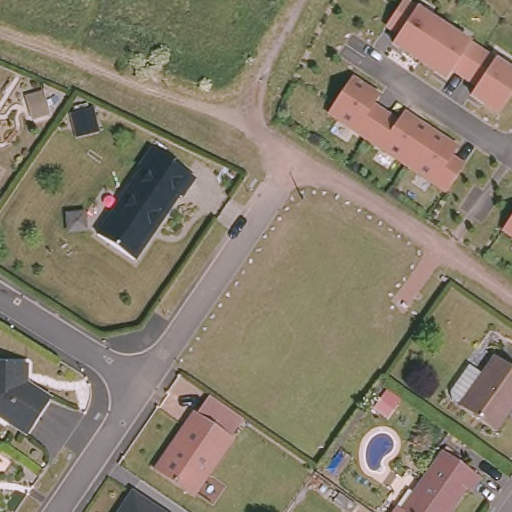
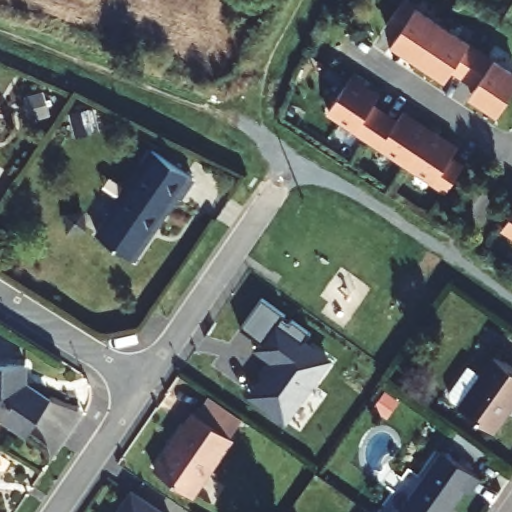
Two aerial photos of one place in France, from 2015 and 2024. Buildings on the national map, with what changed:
unchanged [(498,112),(470,94),(477,85),(452,69),(447,78),(392,42),(399,32),(386,25),(402,0),(403,0),(512,73),(512,91),(498,112)]
unchanged [(447,190),(328,111),(350,77),(378,96),(372,105),(397,121),(402,112),(457,148),(450,157),(462,166),(447,190)]
unchanged [(130,256),(95,233),(94,232),(137,167),(135,165),(148,146),(154,150),(189,174),(176,194),(174,192),(154,221),(144,236),(130,256)]
unchanged [(512,214),(512,234),(502,228),(512,214)]
new [(270,362),(252,350),(259,340),(242,328),(263,300),(310,333),(306,340),(334,359),(286,425),(247,396),(270,362)]
unchanged [(497,425),(465,400),(497,354),(512,364),(512,403),(497,425)]
unchanged [(54,395),(30,431),(0,411),(0,360),(29,360),(29,379),(54,395)]
unchanged [(192,497),(154,471),(194,413),(195,415),(209,396),(240,417),(242,420),(230,438),(232,440),(192,497)]
unchanged [(401,495),(405,497),(446,440),(482,466),(472,481),(468,480),(445,512),(395,512),(391,510),(401,495)]
unchanged [(110,512),(127,487),(163,512),(110,512)]

